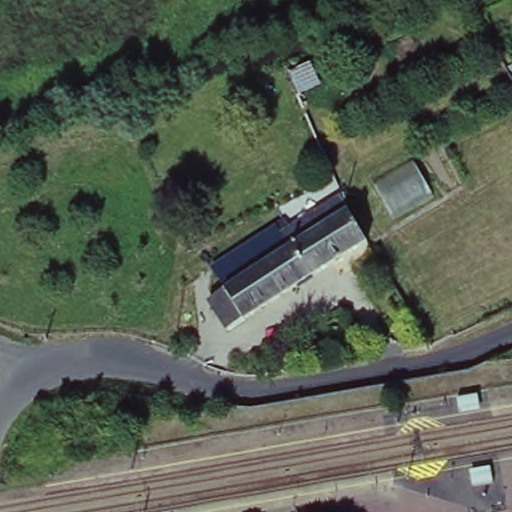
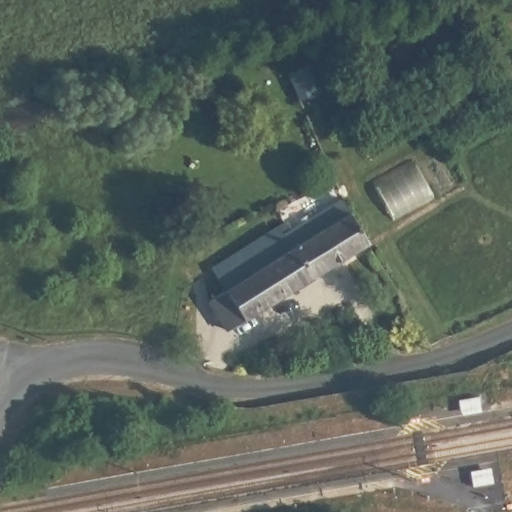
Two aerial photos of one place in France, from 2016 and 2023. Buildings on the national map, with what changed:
unchanged [(295,55),(298,64),(305,61),(316,86),(294,95),(285,71),(290,69),(285,57),(295,55)]
unchanged [(378,179),(421,156),(443,194),(401,218),(378,179)]
unchanged [(217,303),(227,296),(214,275),(248,254),(280,234),(278,230),(285,225),(291,233),(345,198),(351,216),(369,244),(231,335),(211,306),(217,303)]

